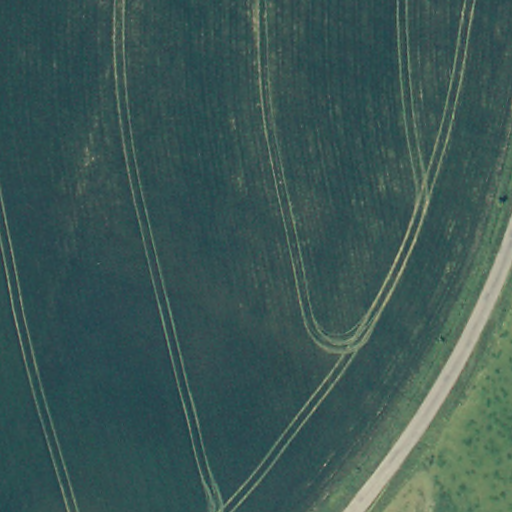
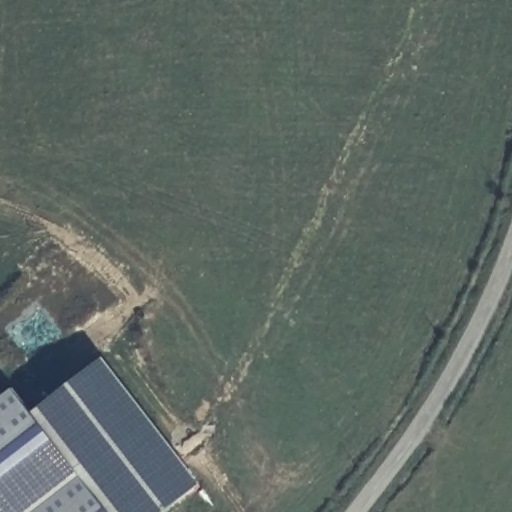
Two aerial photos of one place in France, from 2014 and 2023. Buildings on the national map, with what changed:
new [(9,389),(29,413),(99,358),(196,483),(160,512),(0,512),(0,396),(9,389)]

